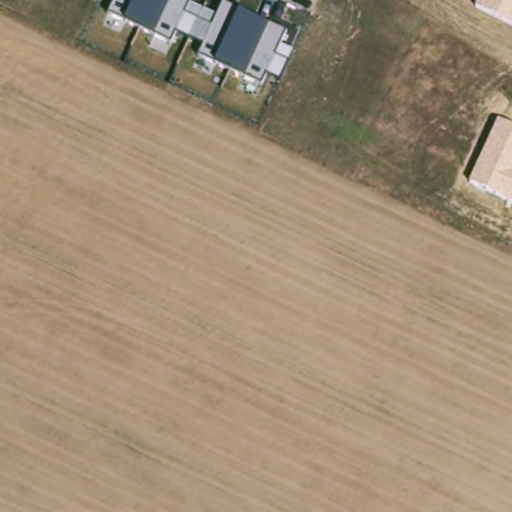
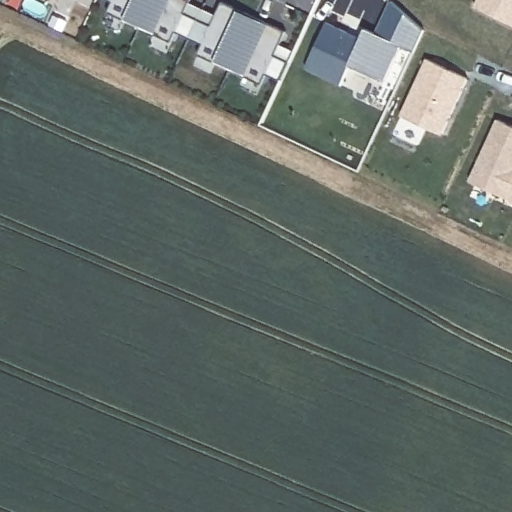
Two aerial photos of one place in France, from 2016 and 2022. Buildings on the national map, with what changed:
unchanged [(190,5),(217,16),(222,4),(285,30),(279,45),(292,51),(286,62),(279,77),(268,72),(261,83),(199,54),(204,46),(175,31),(170,41),(108,13),(112,1),(110,0),(192,0),(190,5)]
unchanged [(474,8),(478,0),(512,0),(512,25),(474,8)]
new [(351,34),(365,41),(370,32),(380,37),(395,4),(428,33),(417,55),(404,49),(387,84),(353,68),(345,88),(309,71),(331,25),(351,34)]
new [(468,77),(443,133),(401,116),(426,59),(468,77)]
unchanged [(470,179),(498,118),(512,124),(512,199),(470,179)]

